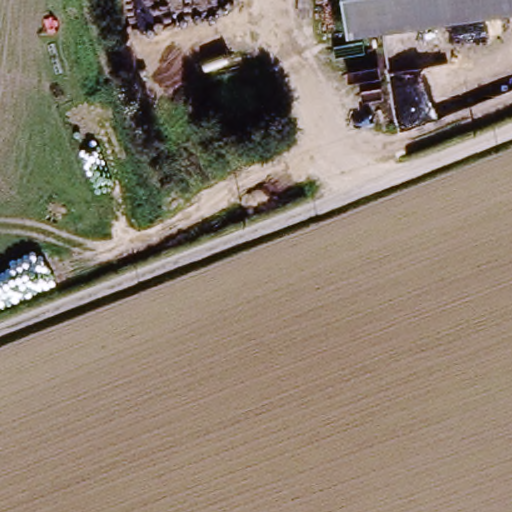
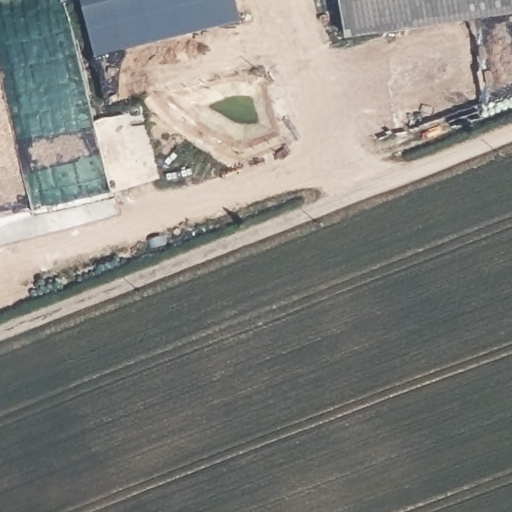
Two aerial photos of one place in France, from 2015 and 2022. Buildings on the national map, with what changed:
new [(105,63),(87,0),(244,0),(251,21),(105,63)]
unchanged [(334,0),(506,0),(508,10),(339,36),(334,0)]
unchanged [(506,0),(512,0),(512,9),(508,10),(506,0)]

